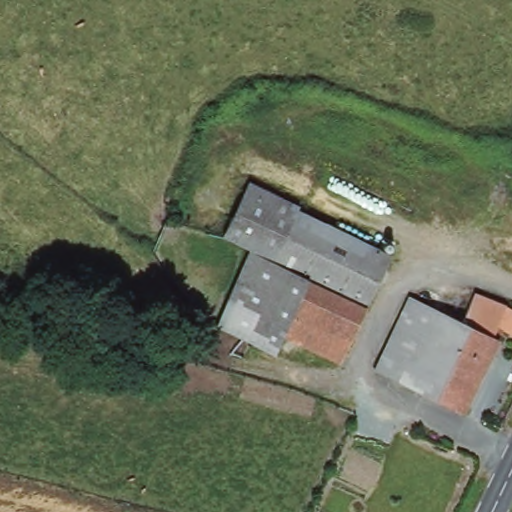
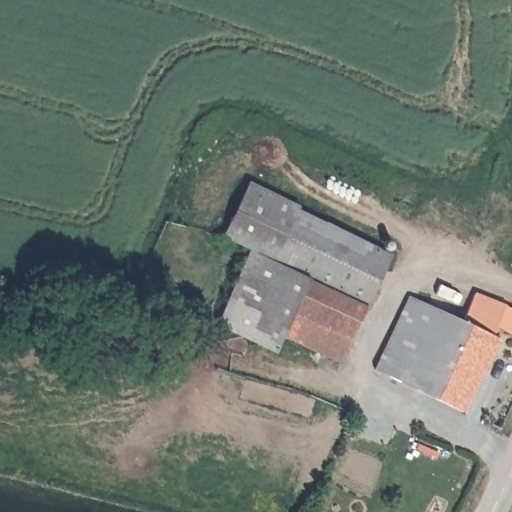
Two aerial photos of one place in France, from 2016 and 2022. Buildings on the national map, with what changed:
unchanged [(214,240),(239,189),(275,206),(274,207),(268,217),(250,256),(214,240)]
unchanged [(234,340),(212,330),(250,256),(268,217),(274,207),(275,206),(305,220),(330,230),(388,256),(365,309),(338,363),(279,338),(272,356),(234,340)]
unchanged [(477,330),(491,303),(502,310),(505,304),(512,308),(512,327),(501,321),(497,333),(503,336),(464,416),(376,372),(409,299),(477,330)]

